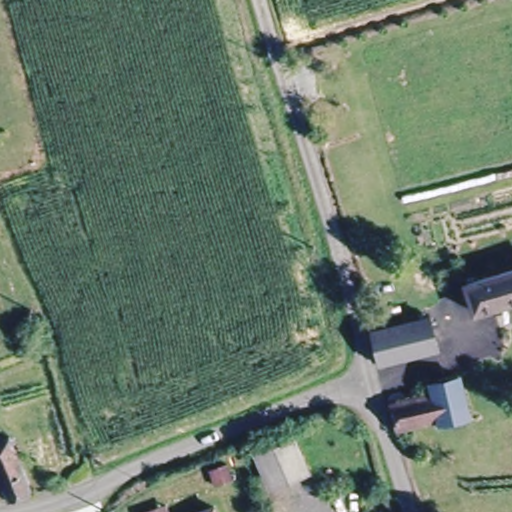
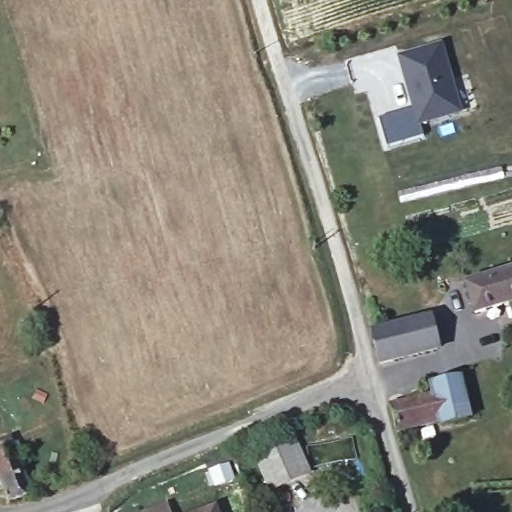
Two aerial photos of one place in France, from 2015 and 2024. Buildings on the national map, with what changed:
new [(462,115),(421,127),(423,136),(386,146),(378,119),(411,110),(396,56),(441,44),(462,115)]
unchanged [(475,314),(466,284),(512,272),(512,326),(511,327),(505,305),(475,314)]
unchanged [(372,333),(378,332),(431,317),(439,348),(380,364),(372,333)]
unchanged [(390,405),(437,394),(435,385),(461,379),(473,421),(448,430),(446,423),(398,435),(390,405)]
unchanged [(8,434),(30,490),(31,492),(8,499),(5,492),(0,477),(0,437),(8,434)]
unchanged [(296,442),(307,478),(277,487),(266,490),(255,455),(267,451),(296,442)]
unchanged [(229,463),(234,478),(215,483),(211,468),(229,463)]
unchanged [(168,509),(169,512),(159,512),(168,509)]
unchanged [(216,512),(209,512),(215,510),(216,512)]

